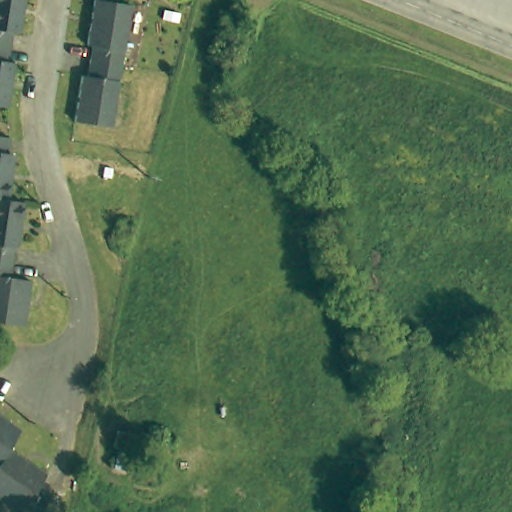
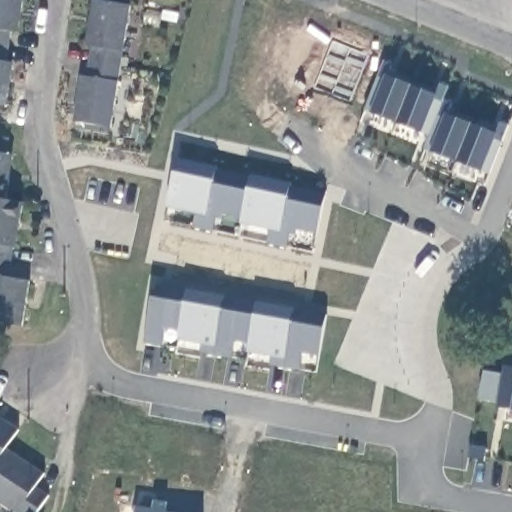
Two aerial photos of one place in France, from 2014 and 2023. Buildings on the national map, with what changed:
unchanged [(24,29),(19,27),(16,43),(0,40),(0,0),(29,0),(24,29)]
unchanged [(98,45),(90,44),(95,14),(97,0),(104,0),(136,5),(125,62),(96,57),(98,45)]
unchanged [(0,105),(0,40),(16,43),(12,60),(21,62),(13,108),(0,105)]
unchanged [(125,62),(113,129),(77,122),(85,74),(94,75),(96,57),(125,62)]
new [(392,63),(387,75),(437,94),(440,82),(449,86),(445,100),(451,102),(446,112),(496,132),(501,120),(510,124),(490,174),(482,170),(432,150),(437,137),(372,110),(366,108),(385,60),(392,63)]
unchanged [(14,140),(12,153),(19,156),(9,198),(0,196),(0,136),(14,140)]
new [(292,182),(290,185),(326,193),(317,232),(297,228),(296,233),(291,232),(286,246),(268,242),(271,229),(241,222),(242,215),(224,212),(222,217),(216,216),(212,229),(194,226),(196,212),(167,206),(178,157),(292,182)]
new [(85,200),(90,176),(141,187),(135,211),(141,212),(130,258),(87,251),(73,197),(85,200)]
unchanged [(16,249),(12,267),(0,265),(0,196),(9,198),(27,202),(25,216),(21,249),(16,249)]
unchanged [(11,278),(34,284),(28,321),(27,329),(0,322),(0,265),(12,267),(11,278)]
new [(327,312),(320,353),(303,352),(300,368),(271,364),(272,356),(248,351),(249,341),(235,339),(231,357),(201,351),(202,343),(178,339),(180,328),(165,327),(162,344),(145,342),(155,282),(327,312)]
new [(499,401),(479,397),(484,370),(503,372),(506,364),(512,365),(512,408),(498,406),(499,401)]
unchanged [(0,462),(0,413),(20,425),(9,446),(0,462)]
unchanged [(41,478),(55,486),(42,512),(27,512),(0,496),(0,462),(9,446),(47,467),(41,478)]

